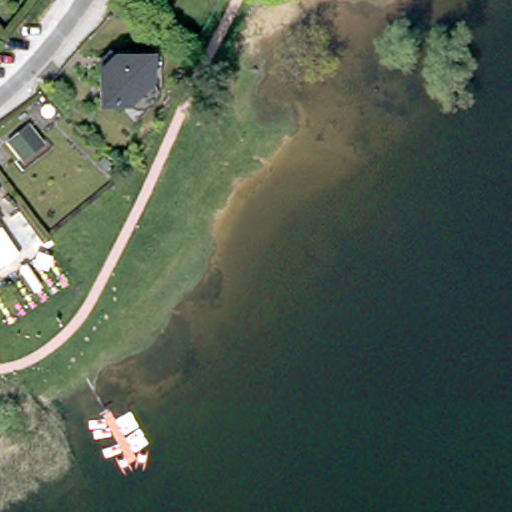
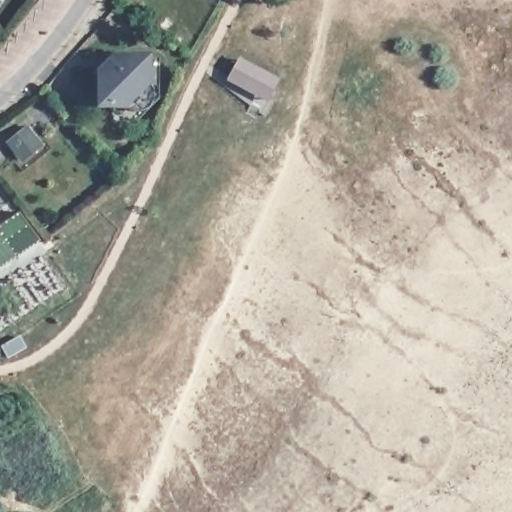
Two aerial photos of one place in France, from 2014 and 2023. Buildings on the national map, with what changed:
unchanged [(123,95),(98,92),(100,61),(115,41),(147,44),(160,45),(160,75),(133,100),(123,95)]
new [(239,56),(277,76),(265,100),(228,78),(239,56)]
unchanged [(39,140),(20,154),(6,136),(25,121),(39,140)]
unchanged [(0,225),(0,221),(2,224),(0,225)]
unchanged [(25,245),(15,252),(4,260),(0,254),(0,235),(10,228),(25,245)]

